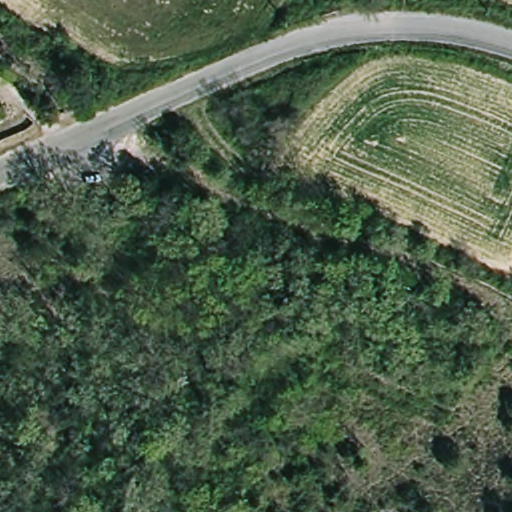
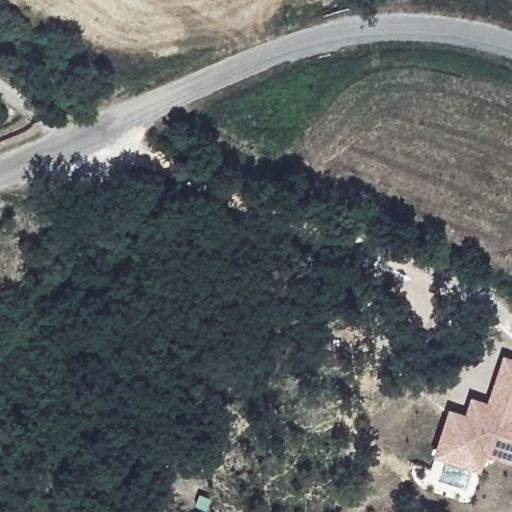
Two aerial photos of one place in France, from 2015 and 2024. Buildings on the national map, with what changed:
new [(489,404),(494,387),(503,356),(512,359),(512,458),(485,449),(460,442),(467,416),(472,399),(489,404)]
new [(451,411),(467,416),(460,442),(485,449),(481,466),(438,453),(451,411)]

